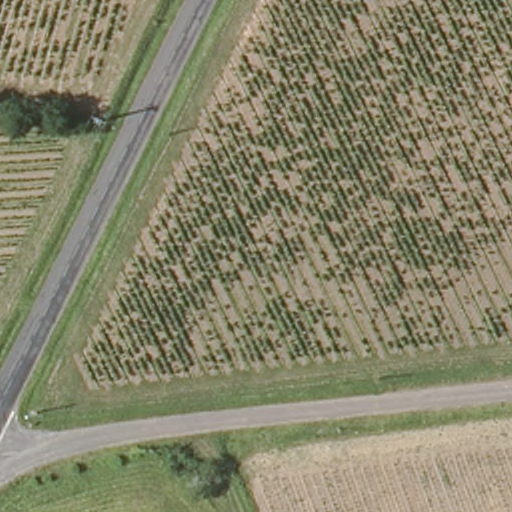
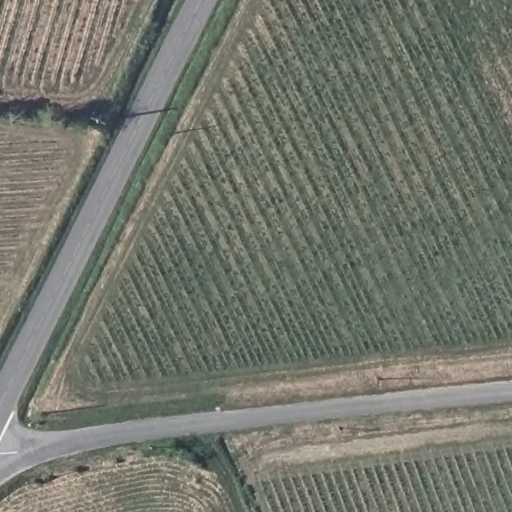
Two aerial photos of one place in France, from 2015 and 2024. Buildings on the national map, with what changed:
[]

